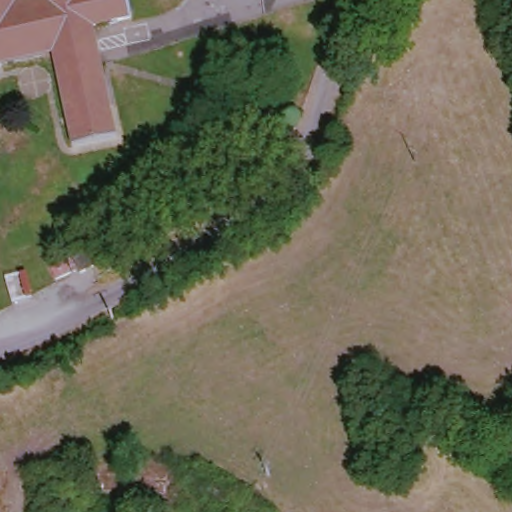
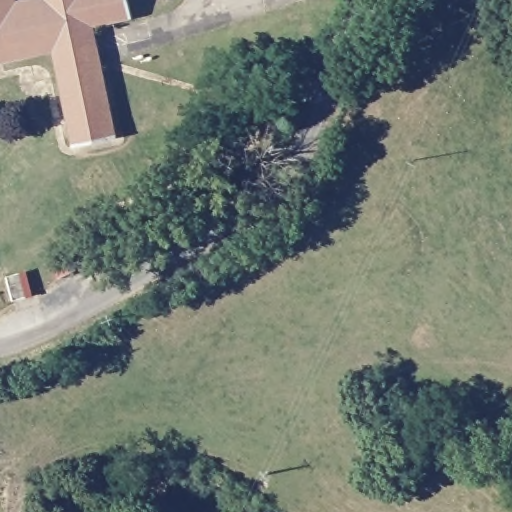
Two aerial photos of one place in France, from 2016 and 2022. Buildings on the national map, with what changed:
unchanged [(0,64),(0,0),(10,0),(11,4),(31,0),(128,0),(132,15),(89,24),(115,135),(70,148),(50,53),(0,64)]
unchanged [(68,267),(63,263),(51,244),(64,236),(76,254),(80,260),(68,267)]
unchanged [(60,265),(53,270),(43,277),(34,265),(52,253),(60,265)]

